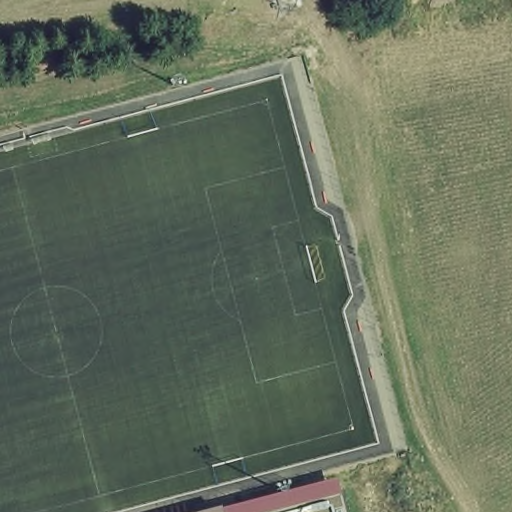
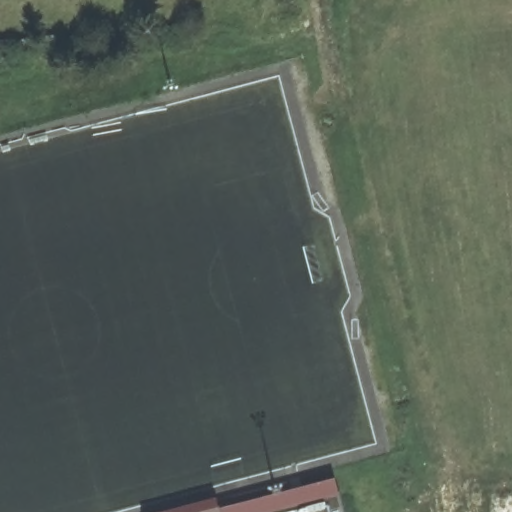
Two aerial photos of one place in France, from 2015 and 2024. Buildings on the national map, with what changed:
unchanged [(335,480),(342,512),(203,512),(218,508),(335,480)]

